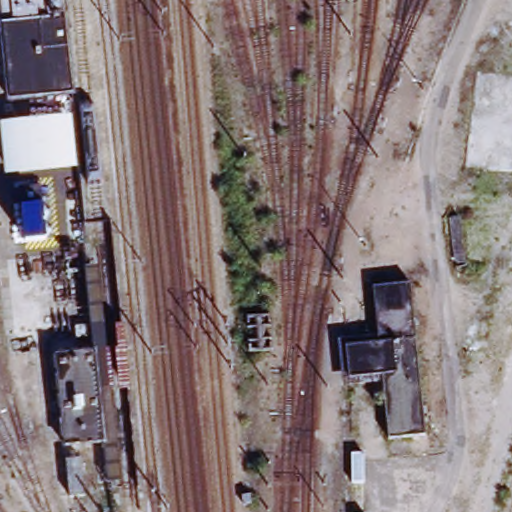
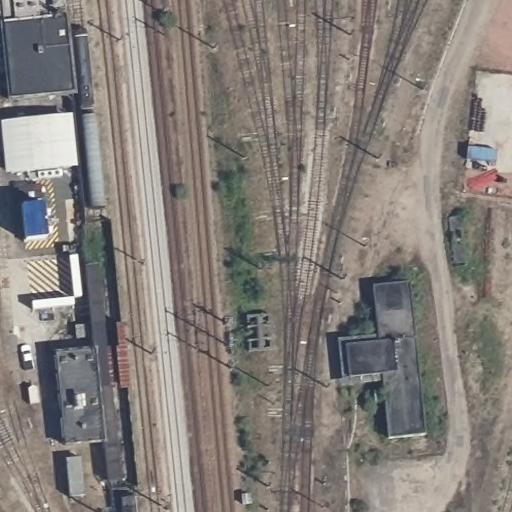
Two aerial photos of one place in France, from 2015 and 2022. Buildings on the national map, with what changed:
unchanged [(69,81),(71,99),(10,104),(0,21),(0,0),(59,0),(69,81)]
unchanged [(2,124),(74,117),(78,167),(7,175),(2,124)]
unchanged [(47,240),(25,242),(21,209),(44,205),(47,240)]
unchanged [(92,350),(84,270),(97,267),(119,487),(107,487),(104,442),(62,446),(52,355),(92,350)]
unchanged [(381,386),(341,388),(337,344),(377,341),(372,290),(407,286),(424,435),(388,440),(381,386)]

